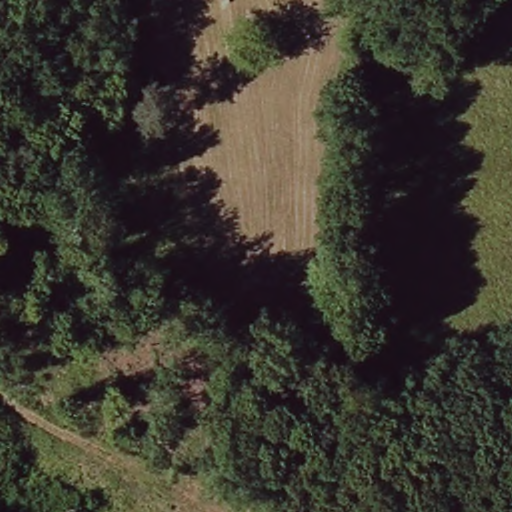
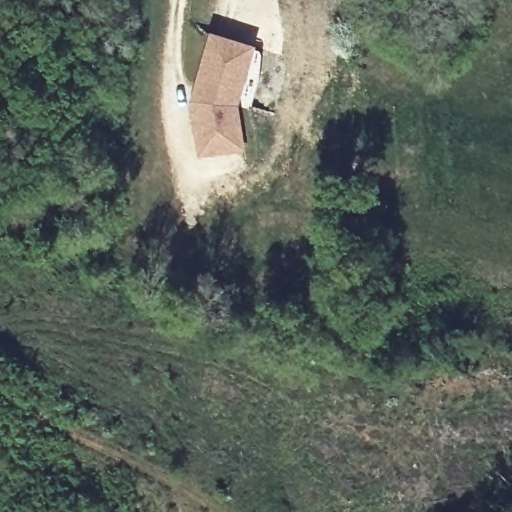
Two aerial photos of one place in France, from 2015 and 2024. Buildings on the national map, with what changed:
new [(208,30),(257,44),(250,79),(242,105),(246,150),(197,158),(189,115),(187,101),(208,30)]

